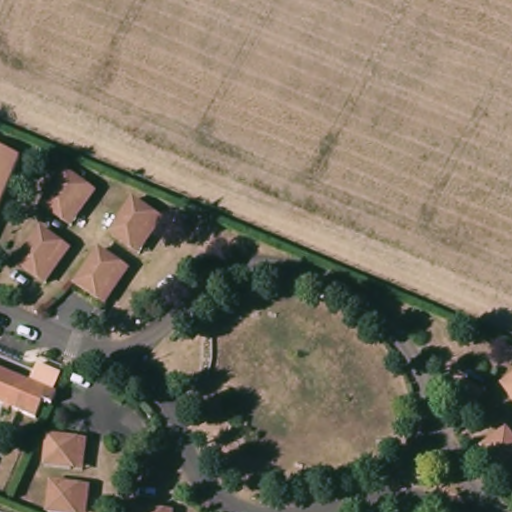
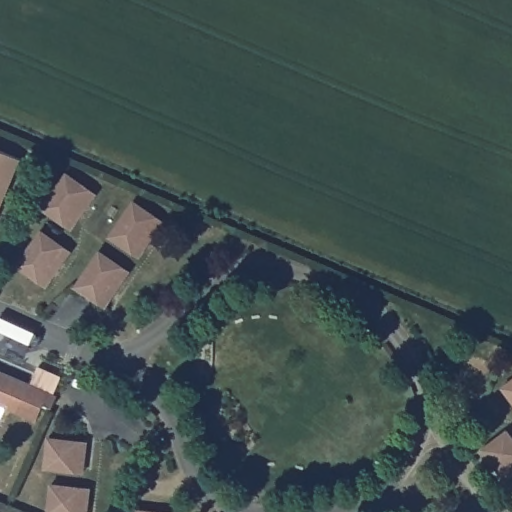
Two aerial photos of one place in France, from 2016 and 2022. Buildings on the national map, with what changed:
unchanged [(18,162),(0,203),(0,153),(18,162)]
unchanged [(59,173),(90,193),(65,229),(35,207),(59,173)]
unchanged [(128,200),(158,223),(134,259),(100,239),(128,200)]
unchanged [(35,229),(66,252),(41,286),(9,265),(35,229)]
unchanged [(91,250),(125,269),(98,309),(69,286),(91,250)]
unchanged [(43,386),(31,415),(0,402),(0,367),(43,386)]
unchanged [(512,408),(498,387),(512,375),(512,408)]
unchanged [(479,445),(503,429),(512,440),(512,474),(504,479),(479,445)]
unchanged [(42,467),(44,438),(85,441),(83,470),(42,467)]
unchanged [(86,486),(83,512),(44,512),(46,485),(86,486)]
unchanged [(170,508),(170,512),(128,512),(129,506),(170,508)]

